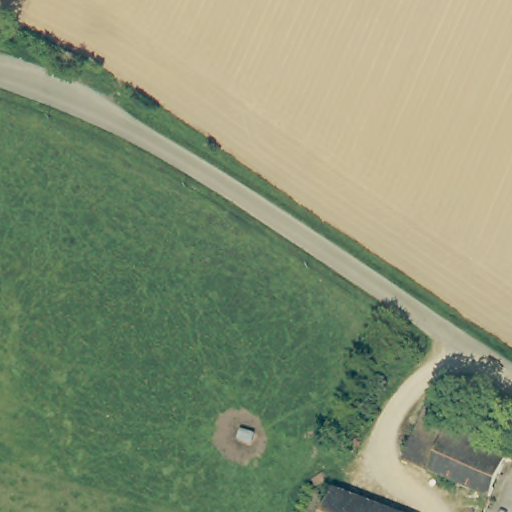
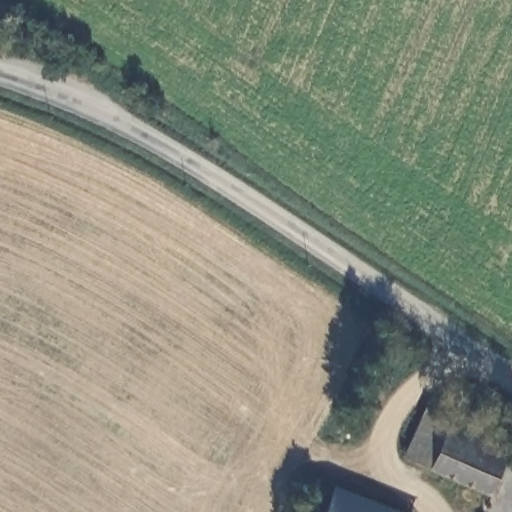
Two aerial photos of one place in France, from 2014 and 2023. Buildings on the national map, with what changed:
unchanged [(447,426),(424,479),(401,468),(424,416),(447,426)]
unchanged [(509,453),(487,506),(424,479),(447,426),(509,453)]
unchanged [(335,495),(380,512),(328,512),(335,495)]

